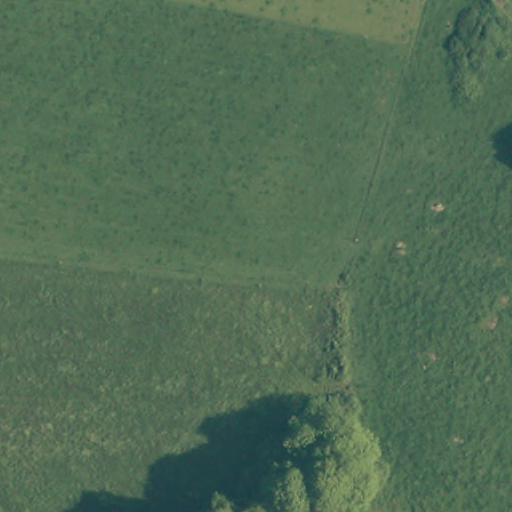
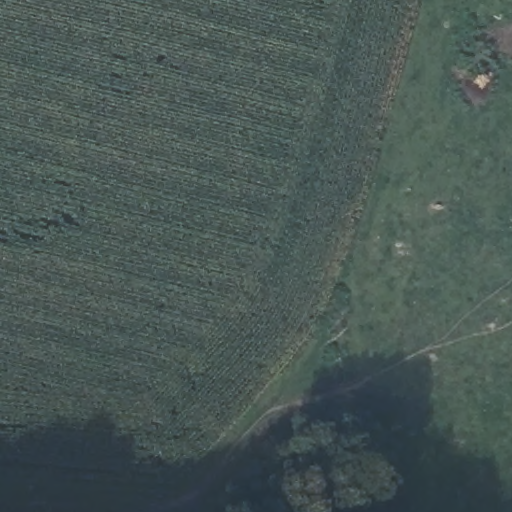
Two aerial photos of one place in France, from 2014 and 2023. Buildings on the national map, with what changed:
[]

